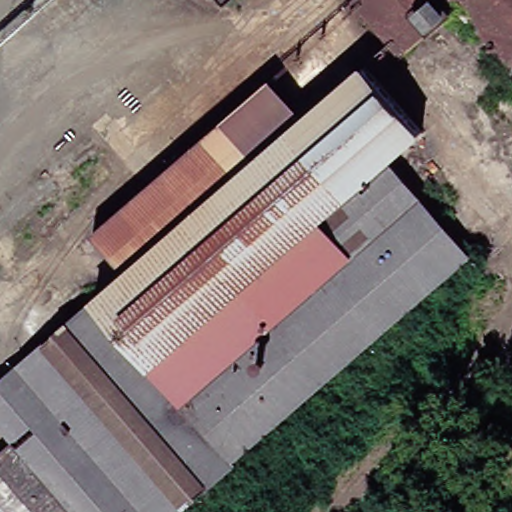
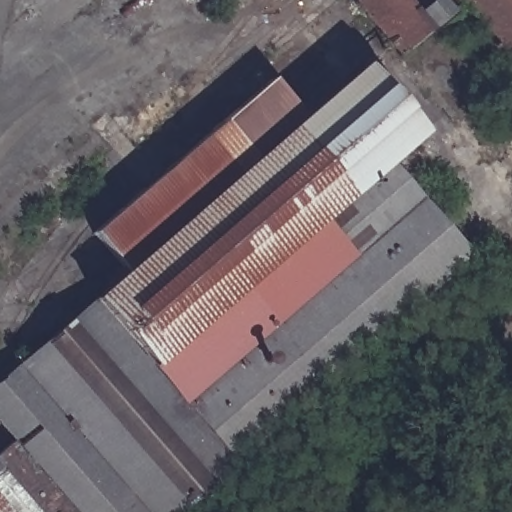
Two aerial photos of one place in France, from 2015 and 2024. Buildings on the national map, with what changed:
unchanged [(459,7),(445,20),(429,33),(399,57),(352,3),(355,0),(512,0),(512,66),(511,67),(459,7)]
unchanged [(360,71),(381,92),(403,117),(418,135),(384,165),(470,261),(180,512),(0,512),(0,454),(11,444),(0,431),(0,383),(123,277),(93,236),(268,84),(301,122),(360,71)]

